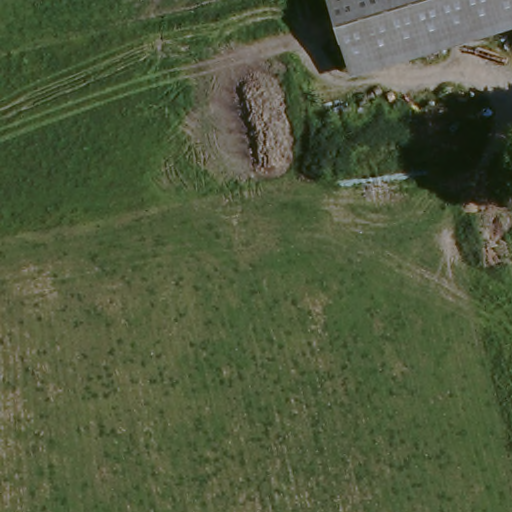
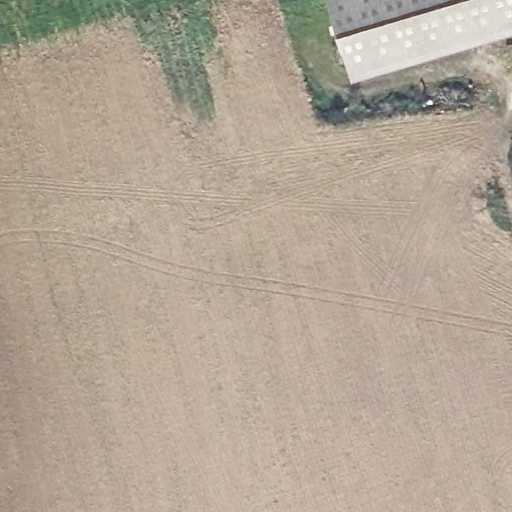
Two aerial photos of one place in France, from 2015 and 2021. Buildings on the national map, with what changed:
unchanged [(357,0),(512,0),(512,23),(354,76),(332,8),(357,0)]

